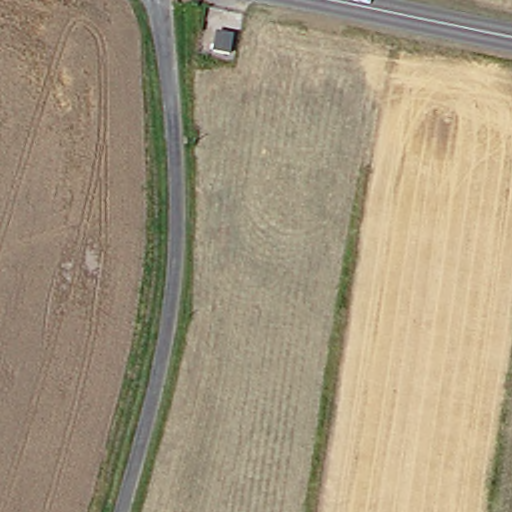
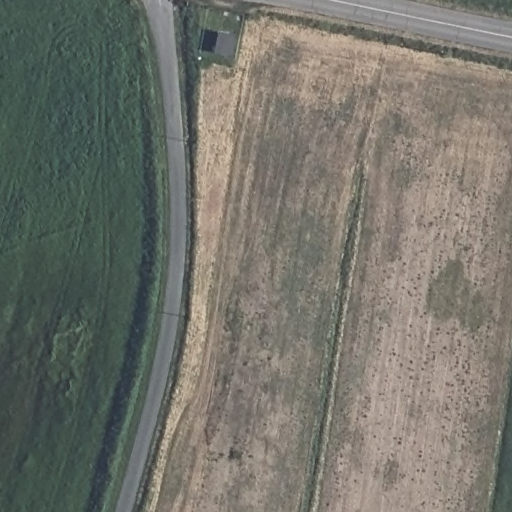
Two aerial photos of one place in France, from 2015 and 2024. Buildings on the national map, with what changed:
unchanged [(218,31),(235,33),(232,51),(217,49),(218,31)]

